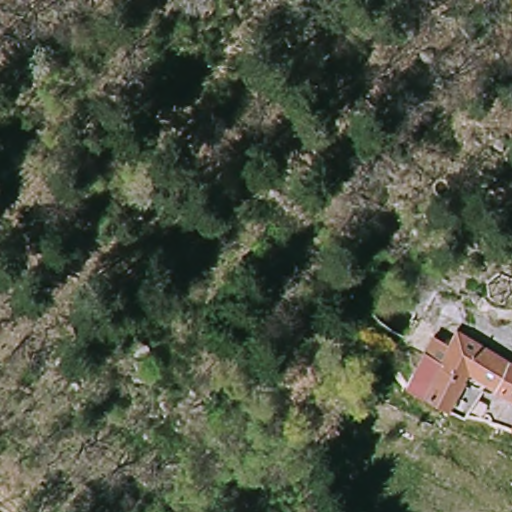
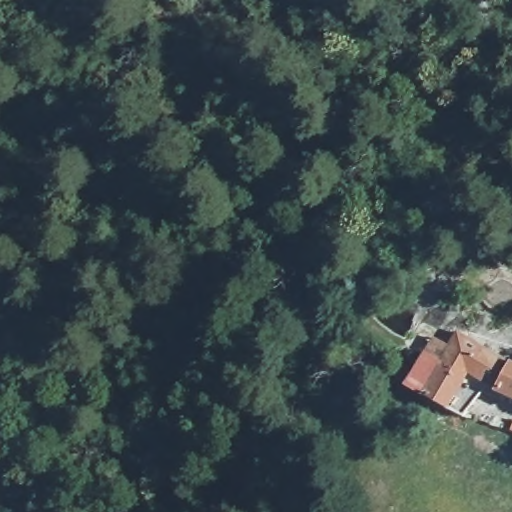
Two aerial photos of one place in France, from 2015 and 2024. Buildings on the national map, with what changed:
unchanged [(450,409),(405,386),(422,353),(438,360),(457,331),(508,361),(512,363),(512,397),(469,376),(450,409)]

